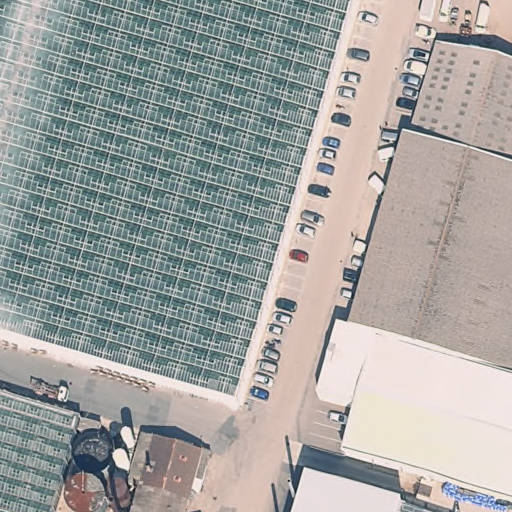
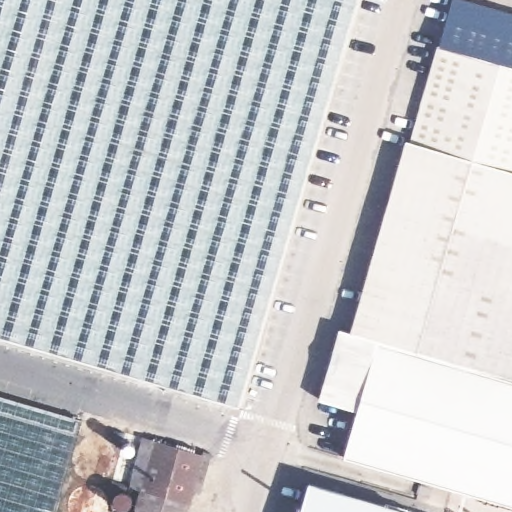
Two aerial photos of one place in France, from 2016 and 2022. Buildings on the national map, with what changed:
unchanged [(0,337),(0,0),(371,0),(251,411),(0,337)]
new [(467,0),(512,13),(512,68),(436,50),(452,0),(467,0)]
unchanged [(357,415),(318,405),(326,375),(330,376),(335,359),(331,358),(337,335),(354,339),(436,50),(512,68),(512,509),(344,461),(357,415)]
unchanged [(90,422),(70,502),(67,512),(0,512),(0,396),(90,422)]
unchanged [(190,455),(191,448),(204,453),(196,480),(181,476),(172,512),(120,512),(141,441),(190,455)]
unchanged [(409,510),(408,512),(300,512),(309,483),(409,510)]
demolished [(106,490),(110,498),(112,508),(110,512),(70,512),(70,502),(77,491),(95,486),(106,490)]

